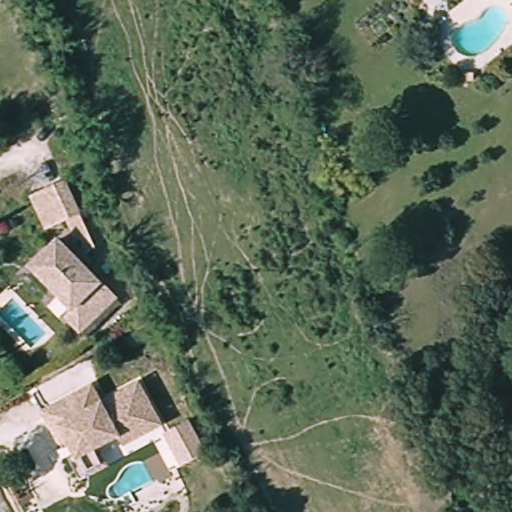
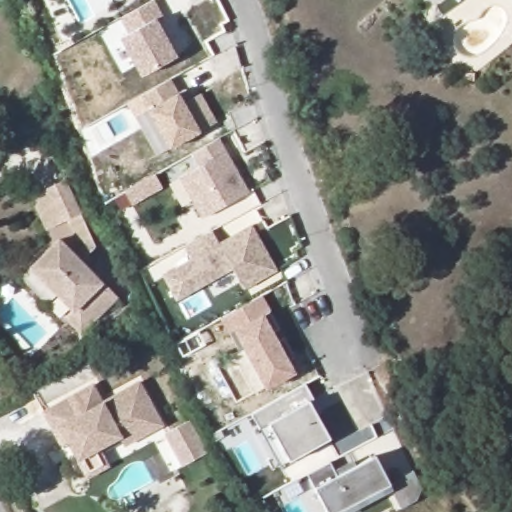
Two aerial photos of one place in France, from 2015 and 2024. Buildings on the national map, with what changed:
new [(151,0),(153,0),(162,15),(155,20),(177,56),(140,76),(118,39),(127,33),(118,19),(151,0)]
new [(177,92),(185,88),(191,99),(200,94),(216,122),(200,132),(168,150),(146,109),(138,96),(170,78),(177,92)]
new [(218,138),(225,151),(248,192),(201,219),(177,177),(198,166),(192,152),(218,138)]
unchanged [(57,309),(62,303),(18,263),(51,230),(67,244),(76,236),(73,231),(67,232),(57,210),(42,217),(27,185),(42,176),(58,170),(89,233),(78,242),(84,245),(75,255),(92,271),(94,270),(112,286),(85,313),(75,325),(57,309)]
new [(122,212),(112,197),(124,190),(154,174),(162,188),(132,205),(122,212)]
new [(211,230),(218,242),(250,224),(277,270),(243,290),(232,270),(176,301),(160,275),(190,258),(183,245),(211,230)]
new [(262,295),(270,310),(267,311),(293,357),(288,361),(295,373),(265,390),(230,331),(227,333),(219,318),(262,295)]
unchanged [(88,475),(78,457),(68,439),(62,442),(43,410),(92,383),(102,401),(139,380),(162,423),(124,444),(120,435),(99,446),(108,464),(88,475)]
new [(303,383),(320,411),(315,414),(328,438),(287,461),(279,465),(259,428),(257,430),(248,413),(303,383)]
new [(189,420),(207,453),(180,467),(162,435),(189,420)]
new [(374,456),(388,483),(413,469),(422,485),(417,500),(400,508),(390,490),(349,512),(325,512),(312,487),(305,473),(328,461),(337,475),(374,456)]

